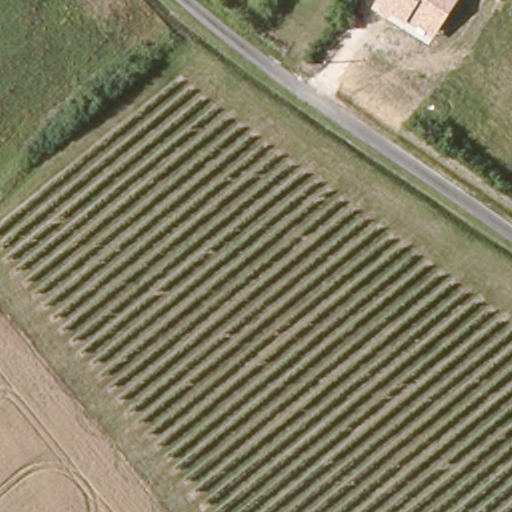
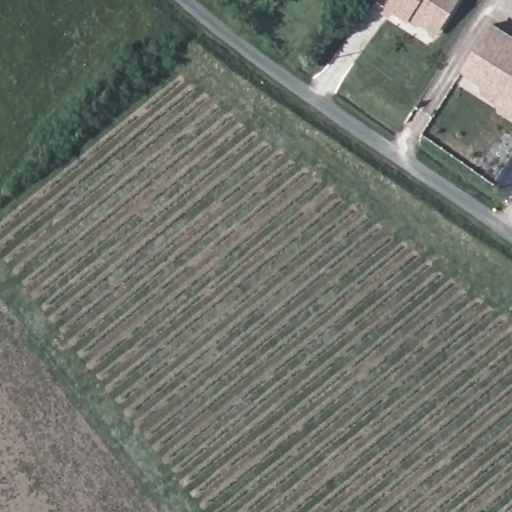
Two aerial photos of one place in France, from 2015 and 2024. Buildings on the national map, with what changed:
unchanged [(431,31),(417,24),(415,27),(406,22),(391,12),(388,17),(374,7),(378,0),(459,0),(434,38),(429,35),(431,31)]
new [(498,114),(495,102),(483,95),(480,84),(461,72),(491,21),(512,35),(512,121),(498,114)]

